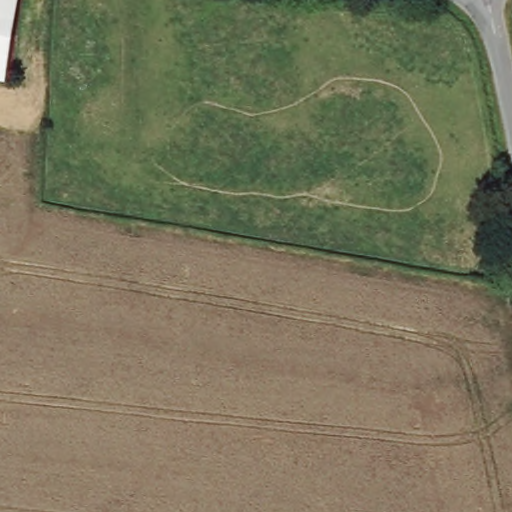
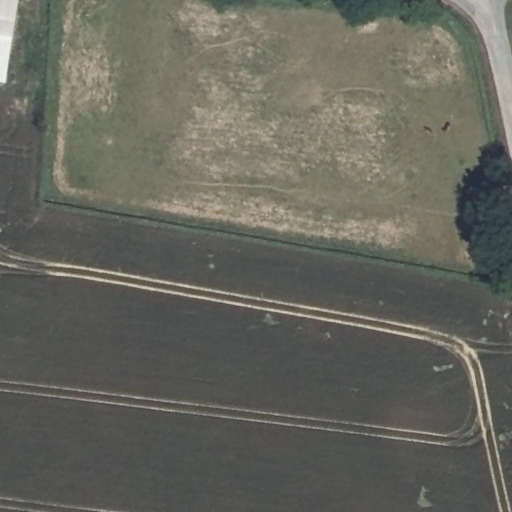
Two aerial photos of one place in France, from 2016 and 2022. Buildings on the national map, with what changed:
unchanged [(11,81),(0,80),(0,0),(23,0),(11,81)]

